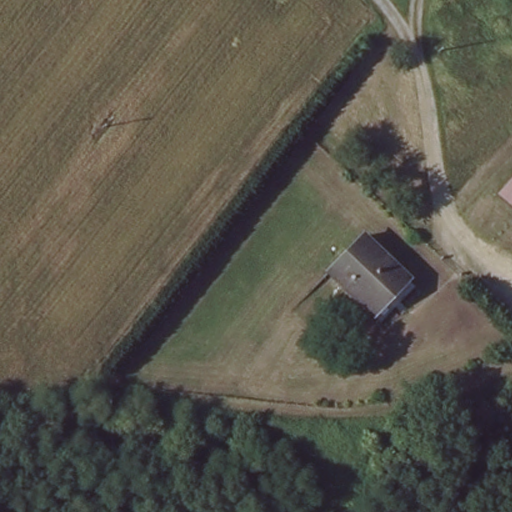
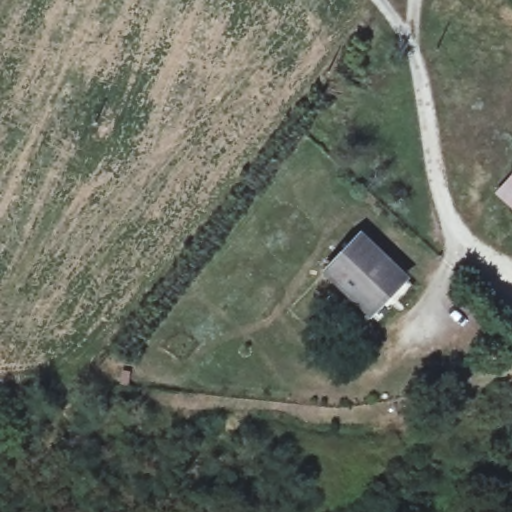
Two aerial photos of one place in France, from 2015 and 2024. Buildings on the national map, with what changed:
unchanged [(495,190),(512,172),(512,208),(495,190)]
unchanged [(410,277),(371,318),(322,271),(362,229),(410,277)]

